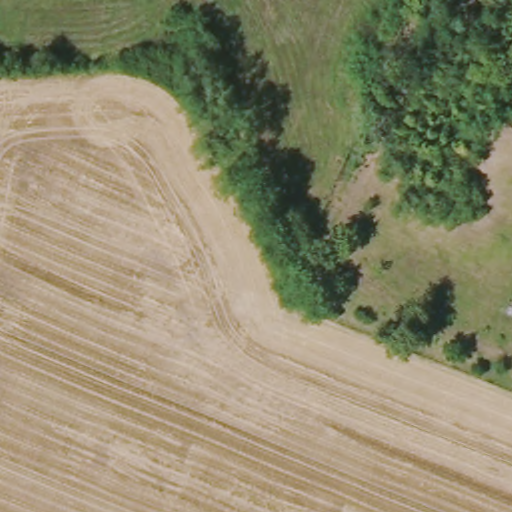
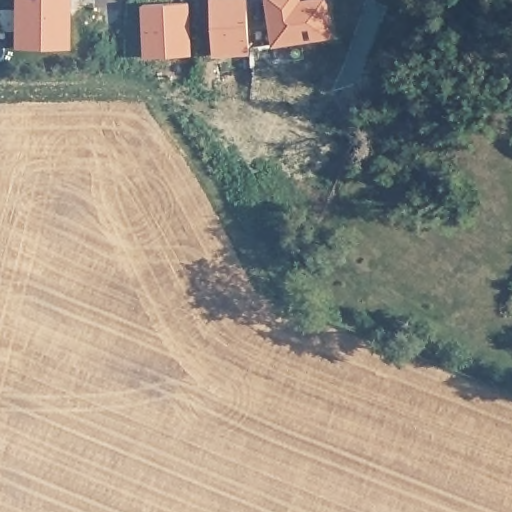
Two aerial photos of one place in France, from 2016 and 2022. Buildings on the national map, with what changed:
new [(73,50),(16,53),(16,0),(73,0),(73,50)]
new [(251,57),(210,59),(209,0),(249,0),(251,57)]
new [(264,0),(300,0),(300,2),(329,0),(333,41),(273,50),(264,0)]
new [(194,58),(143,60),(142,6),(188,2),(194,58)]

